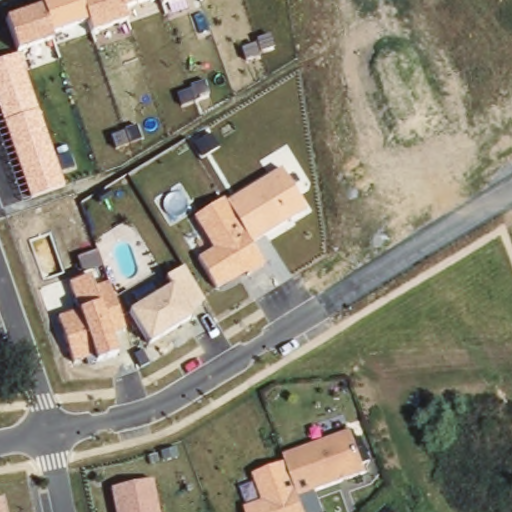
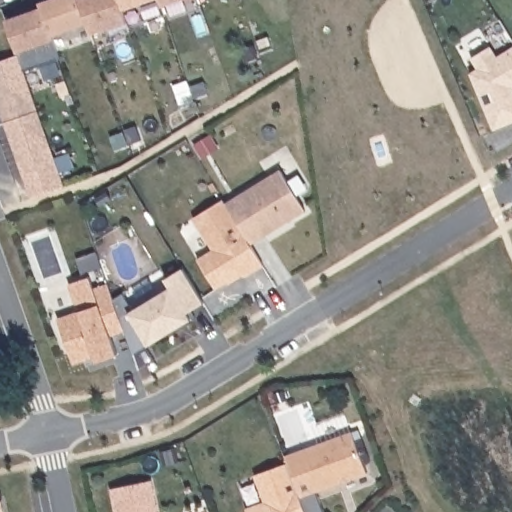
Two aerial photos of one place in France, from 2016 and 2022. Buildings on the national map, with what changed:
unchanged [(127,25),(91,36),(86,25),(50,37),(52,43),(17,53),(6,20),(40,9),(37,3),(46,0),(155,0),(123,11),(127,25)]
unchanged [(157,0),(182,0),(160,8),(157,0)]
new [(479,68),(472,57),(492,46),(498,56),(512,47),(512,122),(495,129),(471,71),(479,68)]
unchanged [(30,201),(0,114),(0,62),(19,56),(65,189),(30,201)]
unchanged [(224,200),(226,203),(280,171),(305,212),(252,246),(264,267),(248,278),(245,274),(216,291),(197,260),(211,251),(192,220),(224,200)]
unchanged [(169,287),(165,280),(182,270),(203,303),(189,313),(192,321),(149,346),(127,314),(169,287)]
unchanged [(90,279),(93,290),(107,285),(125,332),(112,338),(117,354),(97,362),(95,358),(73,363),(57,320),(75,312),(69,285),(90,279)]
unchanged [(363,482),(298,503),(301,512),(242,512),(241,511),(262,504),(254,477),(286,464),(283,457),(350,435),(363,482)]
unchanged [(151,484),(156,512),(111,512),(107,491),(151,484)]
unchanged [(9,512),(0,512),(0,501),(7,500),(9,512)]

